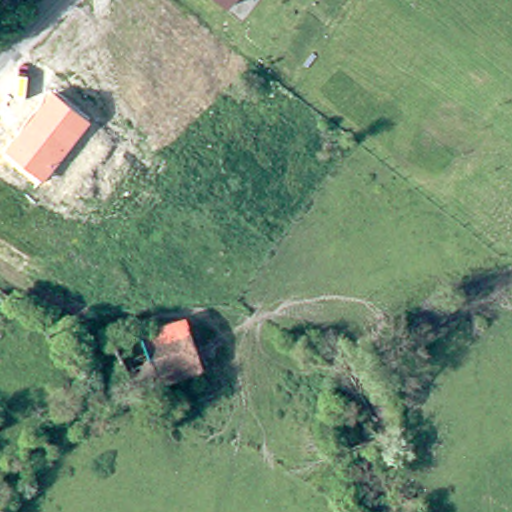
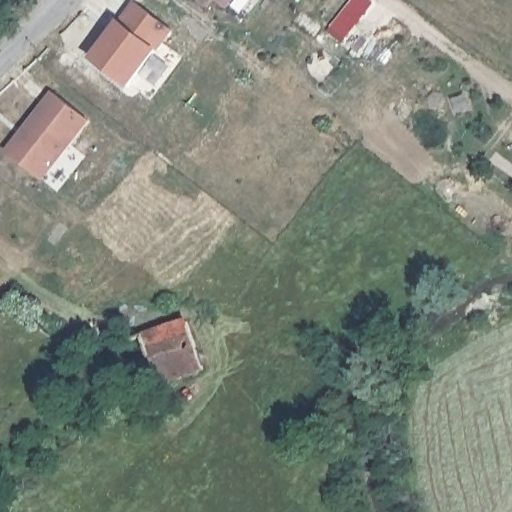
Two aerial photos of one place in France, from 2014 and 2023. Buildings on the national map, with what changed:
unchanged [(231,7),(222,0),(237,0),(231,7)]
new [(352,0),(368,0),(373,5),(345,40),(330,29),(352,0)]
new [(175,31),(159,52),(133,88),(91,60),(120,20),(135,2),(175,31)]
unchanged [(88,121),(43,181),(6,150),(53,91),(88,121)]
unchanged [(136,379),(118,342),(191,322),(209,369),(166,386),(160,374),(136,379)]

